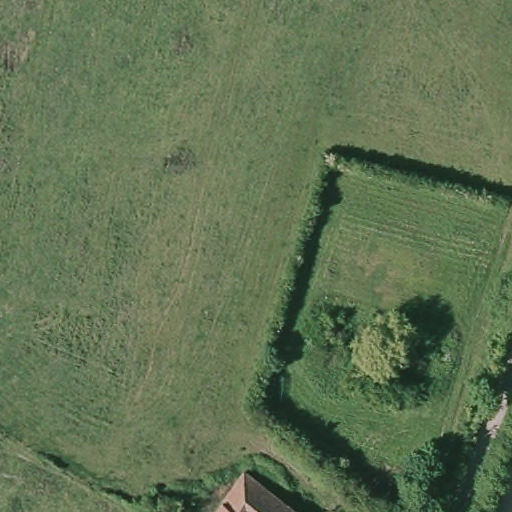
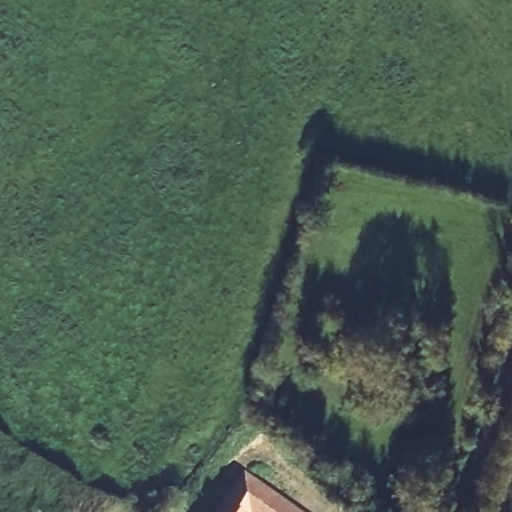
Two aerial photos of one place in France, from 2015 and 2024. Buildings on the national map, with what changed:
unchanged [(262,480),(304,512),(212,512),(246,468),(262,480)]

